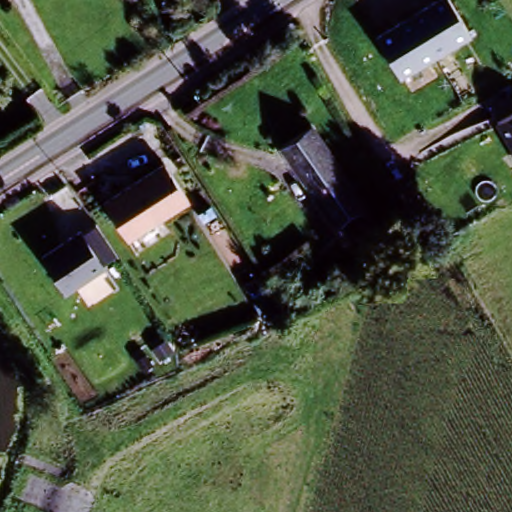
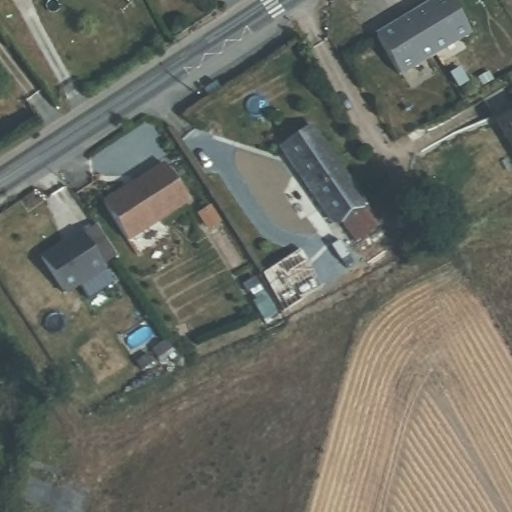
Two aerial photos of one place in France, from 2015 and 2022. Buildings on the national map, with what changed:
unchanged [(399,78),(373,35),(429,0),(447,0),(469,36),(399,78)]
unchanged [(512,148),(496,121),(512,111),(512,148)]
unchanged [(341,224),(333,230),(277,148),(311,124),(380,225),(354,243),(341,224)]
unchanged [(164,165),(187,202),(127,241),(103,204),(164,165)]
unchanged [(80,233),(105,269),(65,293),(42,258),(80,233)]
unchanged [(285,316),(270,286),(260,269),(300,248),(310,265),(290,275),(306,305),(285,316)]

